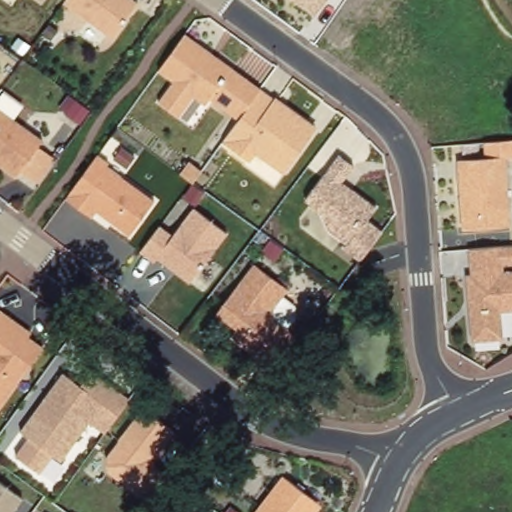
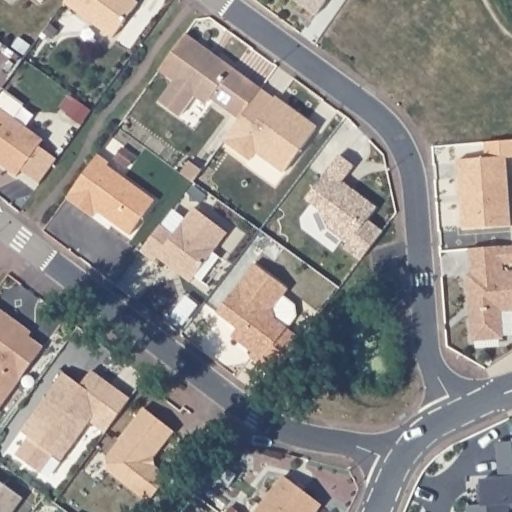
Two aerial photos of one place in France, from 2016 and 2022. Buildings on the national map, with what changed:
unchanged [(41,4),(35,0),(44,0),(41,4)]
unchanged [(141,3),(111,42),(60,4),(63,0),(137,0),(141,3)]
unchanged [(315,16),(290,0),(327,0),(315,16)]
unchanged [(263,87),(237,120),(212,102),(206,107),(196,99),(181,118),(159,100),(172,83),(158,72),(186,32),(263,87)]
unchanged [(318,125),(285,172),(257,152),(251,161),(222,141),(237,120),(263,87),(318,125)]
unchanged [(23,109),(16,121),(43,140),(39,146),(56,160),(40,185),(19,169),(16,174),(0,162),(0,108),(8,99),(23,109)]
unchanged [(484,157),(482,142),(512,140),(512,160),(506,161),(512,215),(512,224),(466,227),(458,159),(484,157)]
unchanged [(357,166),(346,180),(380,206),(371,219),(386,233),(367,258),(326,229),(333,217),(306,199),(339,151),(357,166)]
unchanged [(159,198),(131,235),(101,211),(90,223),(61,199),(99,152),(159,198)]
unchanged [(160,224),(172,233),(192,206),(228,233),(191,282),(155,257),(153,261),(140,251),(160,224)]
unchanged [(512,243),(512,264),(503,266),(504,270),(512,269),(512,310),(503,311),(506,340),(471,343),(466,274),(473,273),(470,249),(512,243)]
unchanged [(291,290),(273,312),(288,324),(267,352),(215,314),(254,261),(291,290)]
unchanged [(31,338),(47,351),(0,414),(0,308),(36,331),(31,338)]
unchanged [(83,386),(91,372),(129,398),(105,434),(90,424),(63,461),(54,456),(43,473),(18,455),(30,438),(21,432),(62,372),(83,386)]
unchanged [(180,427),(160,453),(176,464),(144,503),(108,474),(107,454),(143,403),(180,427)]
new [(483,504),(480,478),(499,476),(497,442),(512,441),(512,504),(508,504),(509,512),(466,512),(465,506),(483,504)]
unchanged [(322,512),(253,512),(283,470),(328,505),(322,512)]
unchanged [(14,512),(0,512),(0,482),(23,498),(14,512)]

